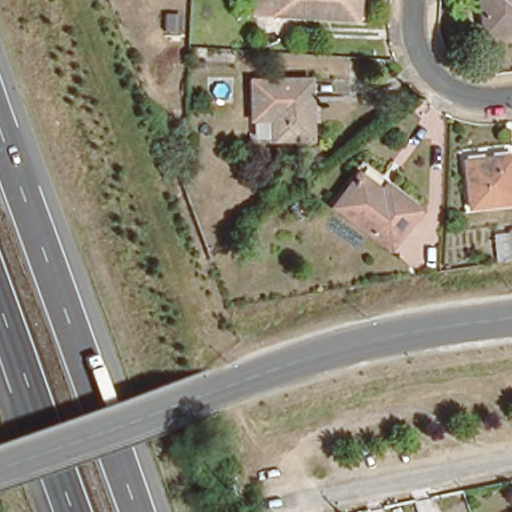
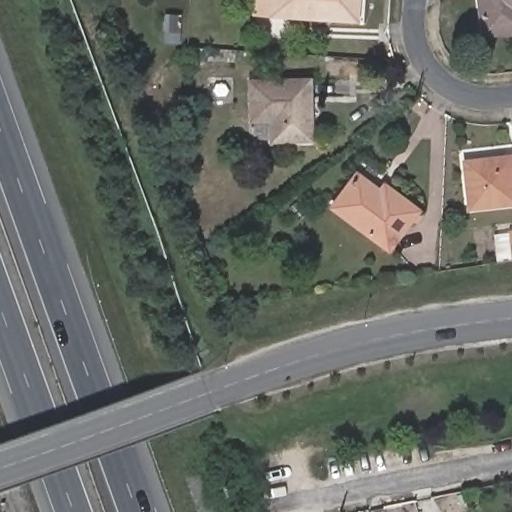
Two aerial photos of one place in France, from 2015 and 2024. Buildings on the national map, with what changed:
unchanged [(351,12),(319,10),(318,15),(266,11),(267,0),(352,0),(351,12)]
unchanged [(507,24),(478,27),(475,0),(512,0),(512,24),(507,24)]
unchanged [(266,119),(247,119),(248,75),(305,76),(306,136),(277,136),(267,136),(266,119)]
unchanged [(512,149),(512,193),(471,197),(468,153),(512,149)]
unchanged [(351,171),(376,188),(380,182),(413,206),(386,243),(328,202),(351,171)]
unchanged [(499,232),(512,230),(512,258),(502,259),(499,232)]

